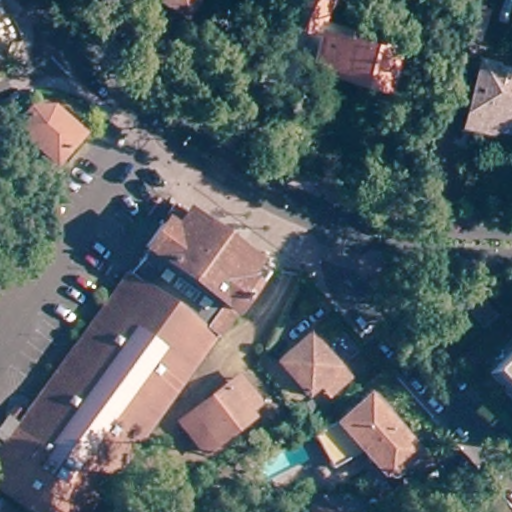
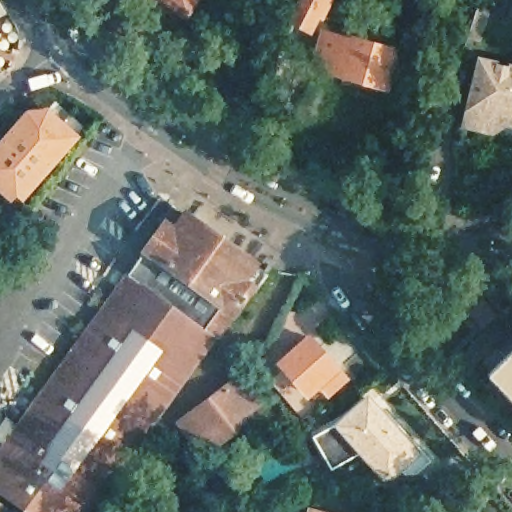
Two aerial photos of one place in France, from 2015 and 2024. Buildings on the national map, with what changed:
unchanged [(146,0),(179,0),(170,15),(146,0)]
unchanged [(194,0),(197,0),(196,1),(194,0)]
unchanged [(312,33),(292,23),(303,0),(331,0),(323,18),(320,16),(312,33)]
unchanged [(357,46),(359,38),(378,43),(376,51),(399,57),(389,94),(319,73),(329,39),(357,46)]
unchanged [(468,135),(473,114),(465,111),(476,66),(512,75),(512,125),(502,131),(491,129),(488,140),(468,135)]
unchanged [(76,138),(52,165),(12,131),(29,113),(46,112),(76,138)]
new [(17,195),(11,202),(0,193),(0,143),(12,131),(52,165),(23,200),(17,195)]
unchanged [(172,226),(185,215),(259,267),(246,286),(259,292),(88,512),(14,512),(11,510),(11,512),(0,512),(0,447),(163,219),(172,226)]
unchanged [(447,301),(449,302),(450,302),(451,303),(452,304),(453,306),(454,307),(454,308),(454,309),(454,311),(454,313),(454,314),(453,315),(452,316),(451,317),(450,318),(449,319),(448,319),(447,319),(446,320),(445,320),(444,320),(442,319),(441,319),(440,319),(439,318),(438,317),(437,316),(437,315),(436,314),(436,313),(436,312),(436,310),(436,309),(436,308),(436,307),(437,306),(438,305),(438,304),(439,303),(440,302),(441,302),(443,301),(444,301),(445,301),(446,301),(447,301)]
unchanged [(483,329),(471,315),(485,302),(497,316),(483,329)]
unchanged [(461,317),(462,317),(463,318),(464,318),(465,319),(465,320),(466,321),(467,322),(467,323),(467,325),(467,326),(467,327),(467,328),(467,329),(466,330),(465,331),(464,332),(464,333),(463,334),(461,334),(460,335),(459,335),(458,335),(457,335),(456,335),(454,334),(453,334),(452,333),(451,332),(451,331),(450,330),(449,329),(449,328),(449,327),(449,326),(449,324),(449,323),(449,322),(450,321),(451,320),(451,319),(452,318),(453,318),(455,317),(456,317),(457,316),(458,316),(459,316),(461,317)]
unchanged [(332,376),(338,371),(347,382),(330,397),(320,386),(308,397),(280,365),(310,339),(325,356),(319,361),(332,376)]
unchanged [(500,379),(512,367),(512,391),(500,379)]
unchanged [(239,389),(258,414),(226,438),(230,443),(214,455),(191,424),(239,389)]
unchanged [(396,431),(394,433),(416,458),(388,483),(339,427),(370,401),(396,431)]

